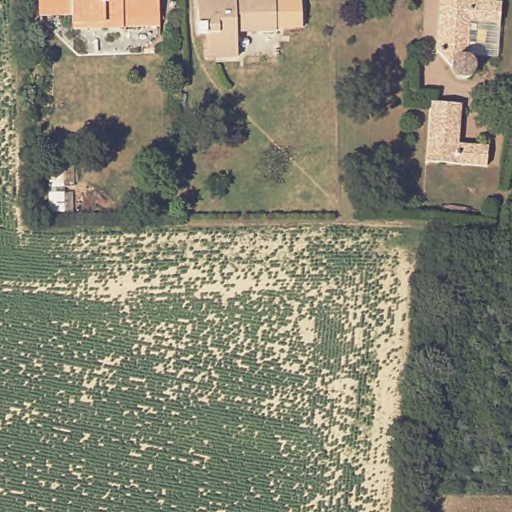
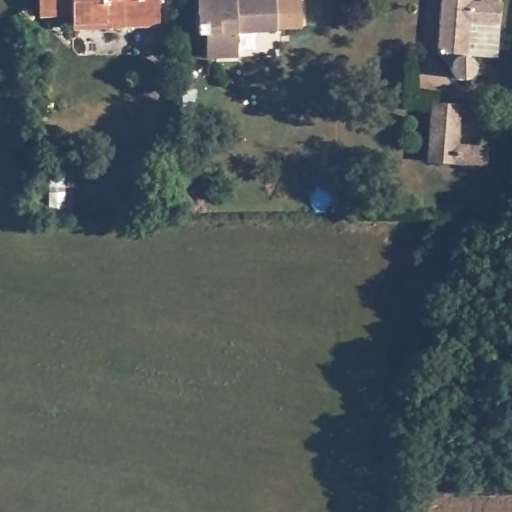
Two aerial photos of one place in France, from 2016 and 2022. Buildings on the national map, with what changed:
unchanged [(101,22),(98,18),(70,17),(68,11),(34,10),(34,0),(156,0),(157,22),(101,22)]
unchanged [(276,27),(276,31),(238,32),(238,57),(208,57),(208,35),(199,35),(199,0),(302,0),(302,27),(276,27)]
unchanged [(478,74),(475,80),(470,84),(463,85),(457,82),(452,72),(439,59),(444,0),(468,0),(468,5),(481,6),(481,4),(482,0),(494,0),(496,2),(496,7),(503,7),(501,29),(498,62),(471,60),(478,71),(478,74)]
unchanged [(463,104),(460,144),(489,147),(488,166),(428,161),(431,101),(463,104)]

